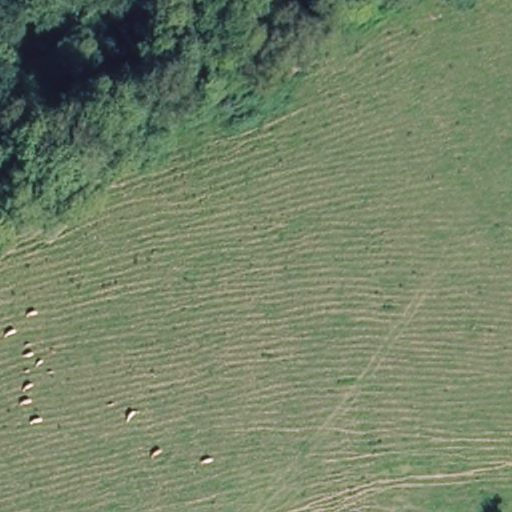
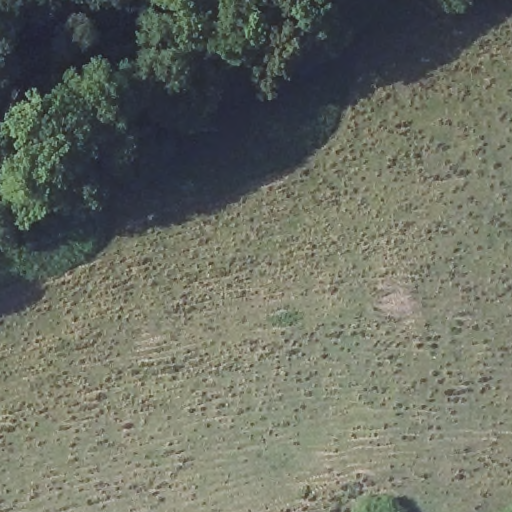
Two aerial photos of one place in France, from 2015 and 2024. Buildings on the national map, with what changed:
[]

